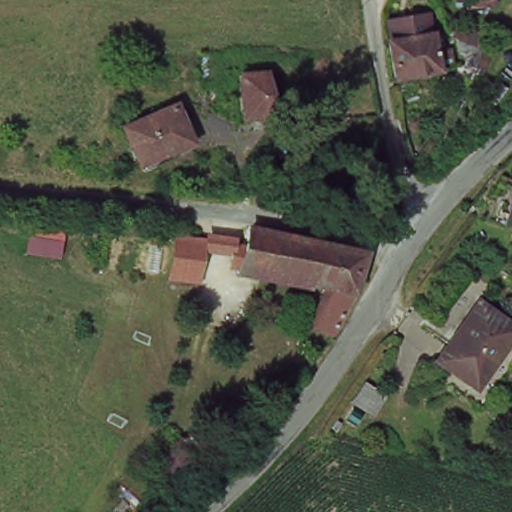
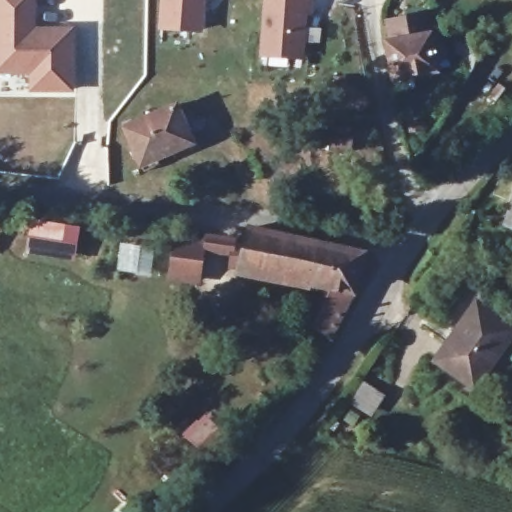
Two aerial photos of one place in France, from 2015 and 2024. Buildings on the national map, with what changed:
new [(28,75),(0,75),(0,0),(35,0),(35,27),(72,27),(72,94),(28,92),(28,75)]
new [(204,0),(201,32),(156,30),(158,0),(204,0)]
new [(304,14),(301,60),(256,57),(261,0),(312,0),(311,15),(304,14)]
unchanged [(439,50),(440,55),(446,54),(447,66),(431,68),(432,75),(389,80),(381,44),(395,42),(393,22),(412,20),(431,18),(434,38),(435,50),(439,50)]
unchanged [(457,65),(463,50),(452,45),(453,43),(458,32),(480,40),(474,55),(467,70),(457,65)]
demolished [(264,79),(266,118),(239,120),(238,78),(264,79)]
unchanged [(191,143),(144,162),(128,125),(174,104),(188,133),(191,143)]
unchanged [(227,184),(226,200),(198,199),(198,181),(227,184)]
unchanged [(504,226),(509,212),(505,210),(509,197),(512,198),(512,228),(504,226)]
unchanged [(359,285),(351,297),(241,267),(251,230),(366,260),(359,285)]
unchanged [(470,390),(432,360),(475,304),(512,331),(512,335),(470,390)]
unchanged [(369,423),(347,401),(364,378),(386,397),(369,423)]

